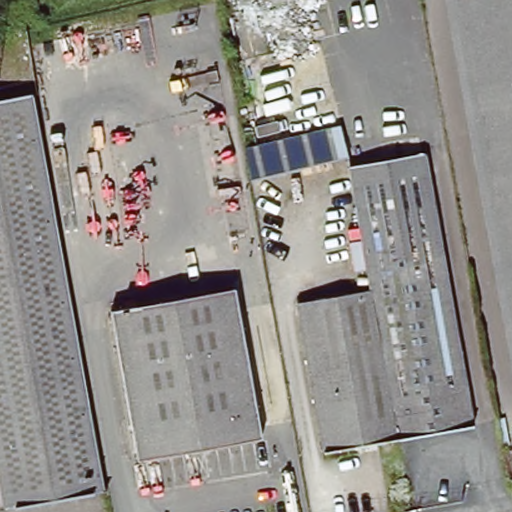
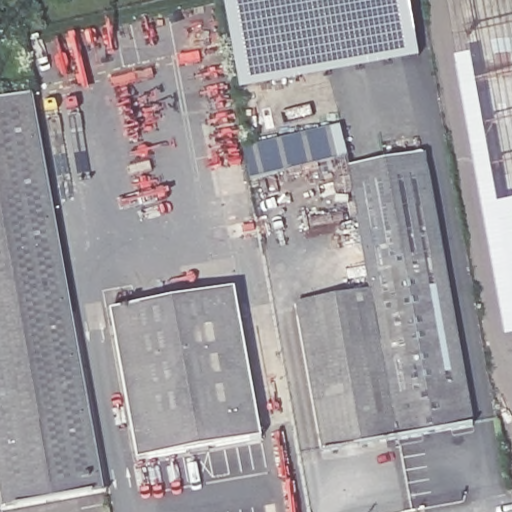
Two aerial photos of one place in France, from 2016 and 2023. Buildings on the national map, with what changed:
new [(241,89),(224,0),(408,0),(419,56),(241,89)]
unchanged [(512,0),(512,78),(479,84),(464,0),(512,0)]
unchanged [(512,78),(512,268),(479,84),(512,78)]
unchanged [(63,249),(0,260),(0,107),(37,101),(63,249)]
unchanged [(346,159),(248,176),(245,161),(243,149),(341,132),(342,137),(346,159)]
unchanged [(384,162),(379,143),(417,135),(424,162),(386,167),(389,186),(352,192),(348,170),(384,162)]
unchanged [(369,290),(352,192),(389,186),(386,167),(424,162),(426,178),(429,178),(471,427),(456,429),(457,440),(441,442),(440,433),(396,441),(369,290)]
unchanged [(105,492),(3,509),(0,490),(0,260),(63,249),(105,492)]
unchanged [(259,438),(137,460),(110,311),(232,289),(259,438)]
unchanged [(324,453),(298,303),(369,290),(396,441),(324,453)]

